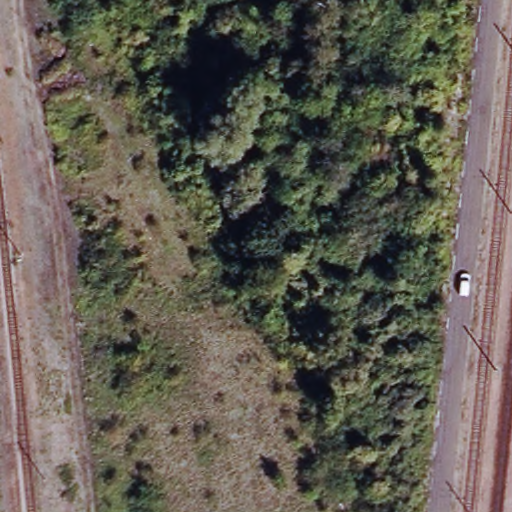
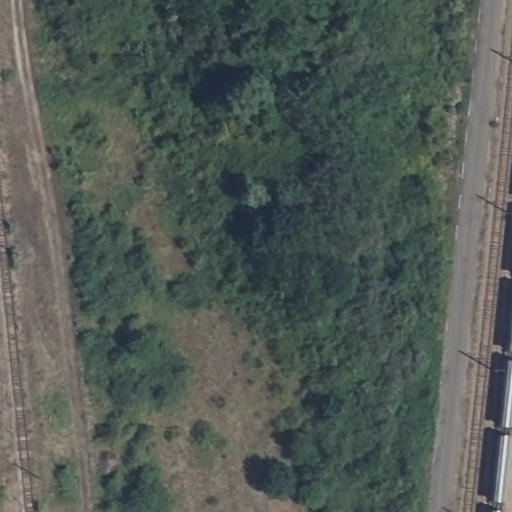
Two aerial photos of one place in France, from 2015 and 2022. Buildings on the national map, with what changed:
[]

